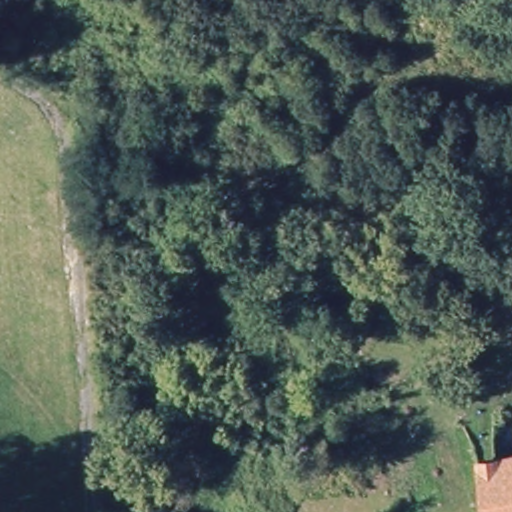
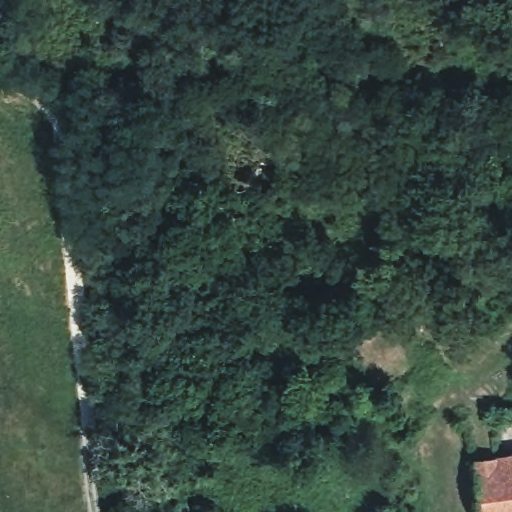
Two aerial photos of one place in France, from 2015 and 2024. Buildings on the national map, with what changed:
unchanged [(480,468),(512,462),(512,512),(486,512),(480,468)]

